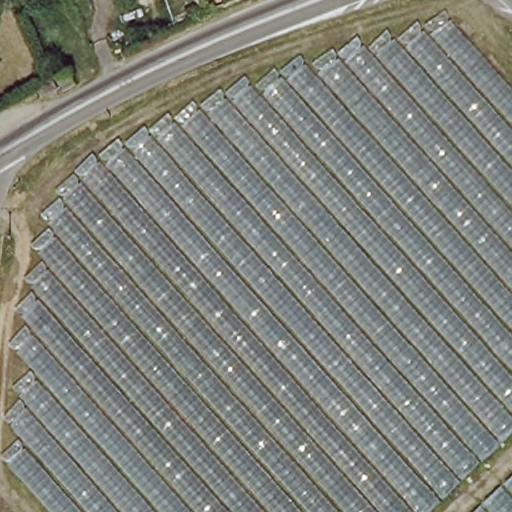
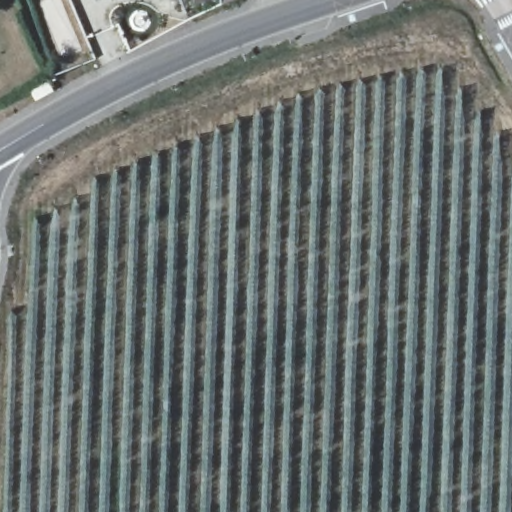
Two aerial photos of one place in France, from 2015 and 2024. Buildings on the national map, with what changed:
demolished [(38,250),(85,174),(147,138),(279,82),(462,27),(512,87),(512,512),(4,512),(38,250)]

